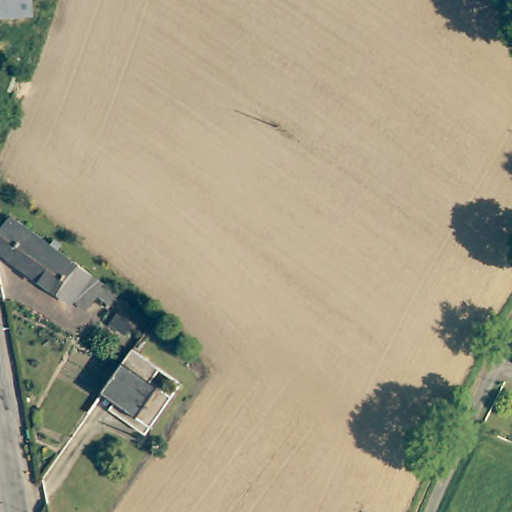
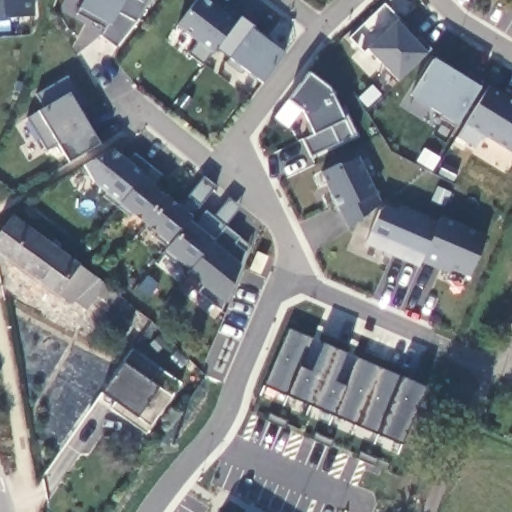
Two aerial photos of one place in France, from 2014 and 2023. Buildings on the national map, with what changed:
unchanged [(34,18),(0,21),(0,0),(33,0),(34,18)]
new [(145,9),(136,21),(118,48),(101,36),(105,29),(76,13),(82,8),(79,6),(82,0),(150,0),(145,9)]
new [(247,71),(240,73),(226,62),(230,58),(217,47),(214,52),(203,65),(189,53),(199,42),(177,25),(196,0),(209,0),(223,10),(226,5),(251,25),(252,28),(285,54),(263,82),(247,71)]
new [(367,48),(396,20),(415,40),(419,37),(431,48),(427,52),(398,80),(367,48)]
new [(458,123),(455,126),(440,118),(444,115),(412,97),(435,58),(481,87),(458,123)]
new [(313,157),(304,139),(315,133),(304,108),(290,98),(309,71),(331,89),(341,111),(345,109),(357,135),(313,157)]
new [(39,111),(46,107),(37,94),(68,77),(85,105),(80,111),(100,143),(69,161),(60,145),(46,150),(27,118),(39,111)]
new [(457,136),(489,84),(511,98),(511,93),(512,94),(512,153),(487,137),(480,139),(475,147),(457,136)]
new [(95,184),(84,165),(112,148),(130,161),(145,173),(143,176),(120,204),(95,184)]
new [(214,239),(190,269),(180,260),(175,263),(163,253),(165,249),(168,246),(155,237),(159,234),(120,204),(143,176),(145,173),(130,161),(135,153),(164,175),(156,186),(179,205),(204,176),(217,186),(193,216),(190,220),(196,225),(207,210),(215,216),(229,198),(241,206),(214,239)]
new [(348,228),(320,171),(358,156),(375,193),(381,203),(348,228)]
new [(469,277),(451,270),(449,273),(421,261),(419,266),(365,243),(386,203),(398,209),(400,204),(439,221),(441,215),(488,235),(469,277)]
unchanged [(21,216),(60,245),(64,240),(70,244),(66,249),(128,295),(119,306),(105,296),(96,308),(84,299),(81,302),(1,243),(21,216)]
new [(242,264),(224,303),(221,309),(200,292),(208,284),(190,269),(214,239),(226,224),(253,247),(242,264)]
unchanged [(119,314),(126,303),(142,314),(135,325),(119,314)]
new [(404,444),(380,435),(335,415),(286,396),(264,386),(290,327),(322,340),(348,353),(403,377),(428,387),(404,444)]
unchanged [(182,383),(145,435),(109,409),(113,402),(100,393),(131,348),(182,383)]

